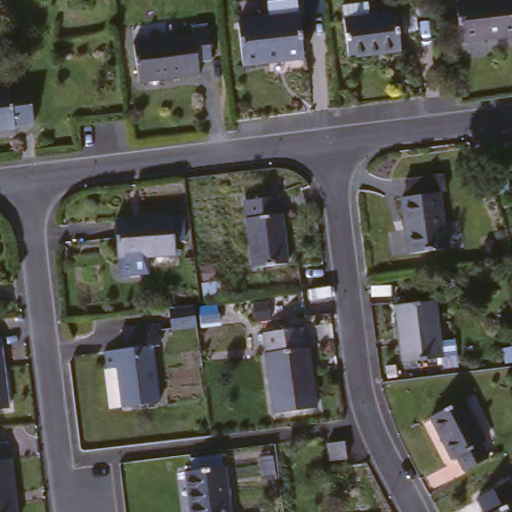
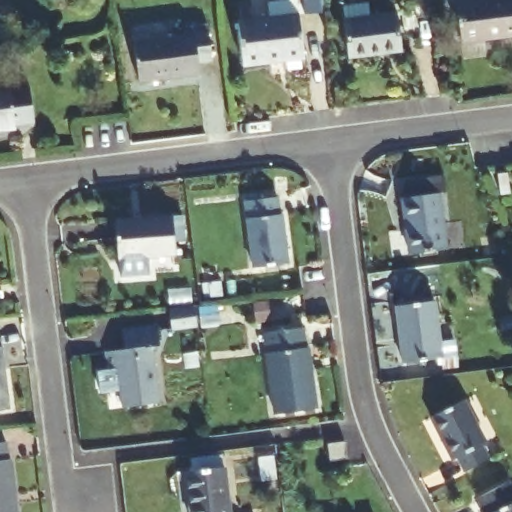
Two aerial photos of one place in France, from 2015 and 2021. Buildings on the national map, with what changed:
unchanged [(463,43),(456,0),(512,0),(512,36),(463,43)]
unchanged [(268,20),(265,5),(295,2),(303,60),(241,67),(235,24),(268,20)]
unchanged [(408,58),(358,64),(351,21),(349,5),(376,2),(378,18),(401,15),(408,58)]
unchanged [(185,40),(184,31),(201,29),(207,71),(192,73),(193,81),(132,89),(126,48),(185,40)]
unchanged [(30,127),(0,132),(0,90),(23,86),(30,127)]
unchanged [(439,180),(445,235),(406,238),(400,184),(439,180)]
unchanged [(280,195),(291,270),(253,275),(241,199),(280,195)]
unchanged [(171,218),(176,256),(119,263),(114,225),(171,218)]
unchanged [(436,304),(444,358),(408,363),(399,309),(436,304)]
unchanged [(194,336),(166,338),(165,320),(192,318),(194,336)]
unchanged [(298,323),(310,409),(271,413),(260,327),(298,323)]
unchanged [(166,338),(166,343),(159,344),(168,401),(129,406),(124,370),(113,371),(109,350),(130,348),(128,329),(164,325),(166,338)]
unchanged [(0,412),(0,342),(11,410),(0,412)]
unchanged [(465,395),(497,452),(467,468),(459,455),(451,459),(428,416),(465,395)]
unchanged [(8,464),(18,462),(25,512),(0,512),(0,447),(5,446),(8,464)]
unchanged [(345,457),(348,478),(324,481),(320,460),(345,457)]
unchanged [(230,512),(181,512),(175,468),(223,463),(230,512)]
unchanged [(483,512),(477,501),(508,484),(512,490),(512,512),(483,512)]

